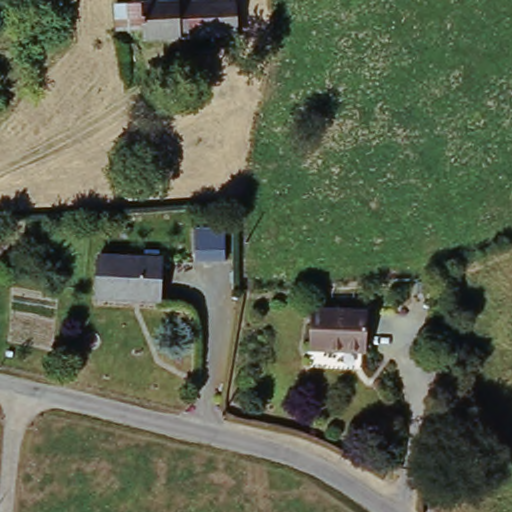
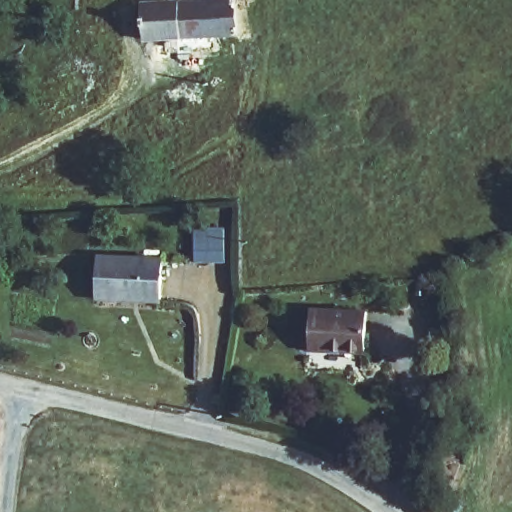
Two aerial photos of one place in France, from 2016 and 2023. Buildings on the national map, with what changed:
unchanged [(157,39),(156,28),(129,30),(127,4),(155,2),(203,0),(249,0),(250,34),(157,39)]
unchanged [(194,228),(226,227),(225,260),(195,261),(194,228)]
unchanged [(105,256),(169,258),(166,301),(102,298),(105,256)]
unchanged [(316,300),(371,302),(368,342),(315,340),(316,300)]

